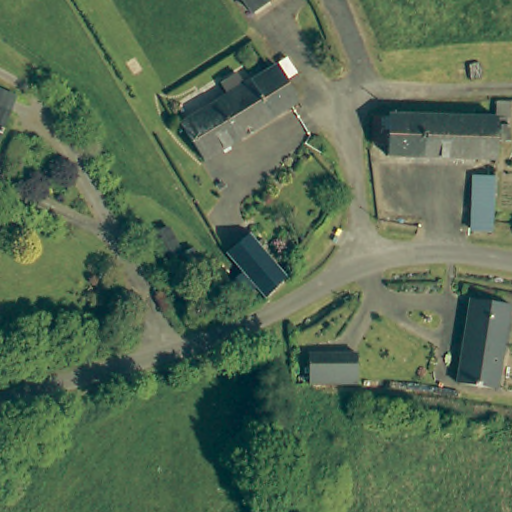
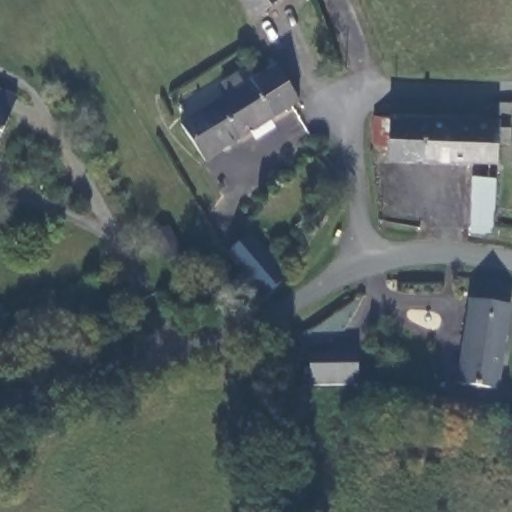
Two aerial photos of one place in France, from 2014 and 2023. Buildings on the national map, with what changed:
unchanged [(244,0),(271,0),(251,11),(244,0)]
unchanged [(183,122),(202,110),(230,94),(222,82),(238,73),(245,84),(271,69),(277,65),(299,101),(205,159),(183,122)]
unchanged [(22,96),(0,151),(0,87),(22,96)]
unchanged [(512,142),(504,141),(499,141),(498,161),(423,159),(424,116),(498,119),(498,105),(498,101),(512,101),(512,119),(510,119),(511,127),(512,127),(512,142)]
unchanged [(391,158),(391,149),(375,149),(375,133),(376,119),(391,119),(391,115),(424,116),(423,159),(391,158)]
unchanged [(474,206),(475,176),(498,177),(497,207),(496,233),(474,230),(474,206)]
unchanged [(153,238),(171,229),(184,255),(199,249),(208,274),(183,286),(173,262),(164,265),(153,238)]
unchanged [(290,278),(270,300),(262,292),(228,252),(250,232),(290,278)]
unchanged [(510,304),(501,389),(461,384),(471,299),(510,304)]
unchanged [(313,356),(362,357),(360,389),(312,387),(313,356)]

